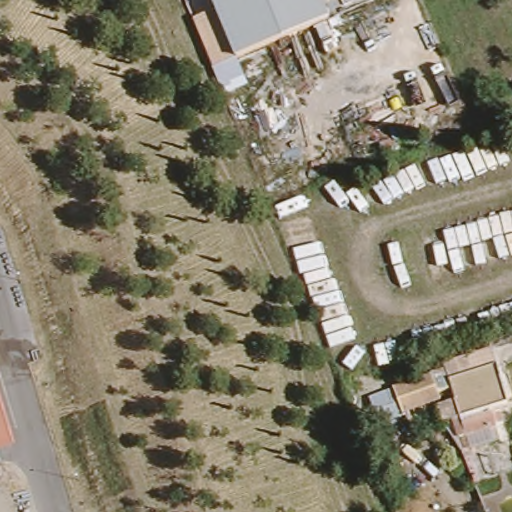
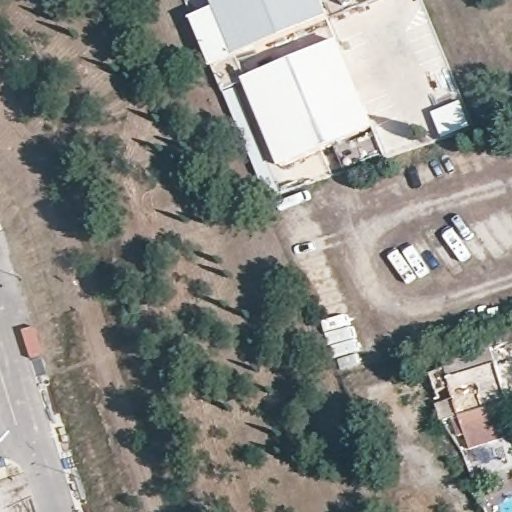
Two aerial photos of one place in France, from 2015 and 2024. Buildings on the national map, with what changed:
unchanged [(238,58),(214,0),(324,0),(332,20),(238,58)]
new [(280,168),(244,82),(235,86),(280,191),(267,197),(221,90),(210,66),(190,19),(217,8),(238,58),(248,79),(338,42),(375,129),(280,168)]
unchanged [(512,404),(512,414),(501,417),(505,429),(463,443),(457,424),(445,427),(440,410),(456,405),(453,395),(447,375),(445,370),(493,356),(509,404),(512,404)]
unchanged [(447,375),(453,395),(441,398),(443,404),(406,418),(375,430),(366,405),(396,392),(447,375)]
unchanged [(12,461),(0,465),(0,420),(12,461)]

